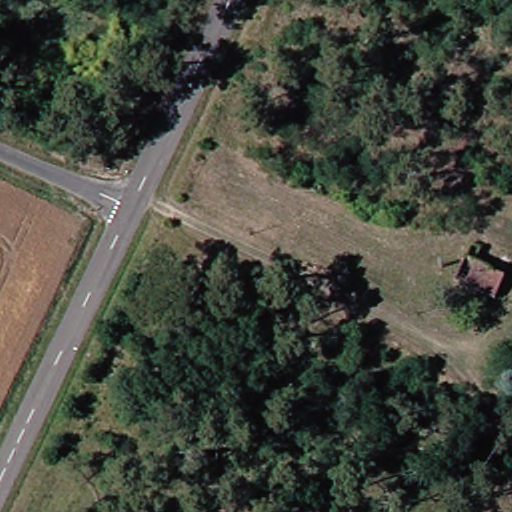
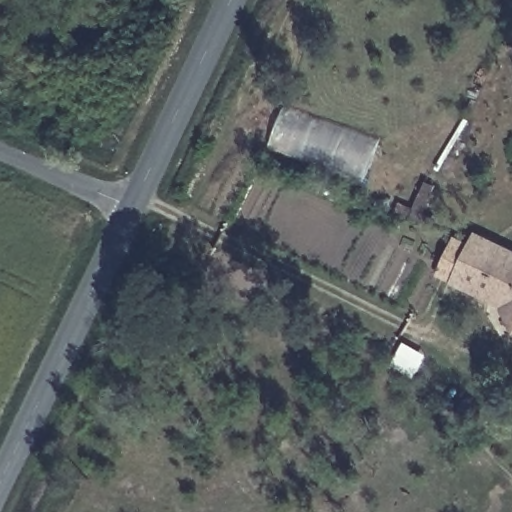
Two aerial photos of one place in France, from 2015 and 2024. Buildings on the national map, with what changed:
new [(366,182),(271,147),(287,106),(384,140),(366,182)]
new [(483,240),(512,254),(512,332),(500,312),(450,286),(468,248),(474,236),(483,240)]
demolished [(474,273),(497,286),(490,306),(451,287),(465,257),(478,263),(474,273)]

